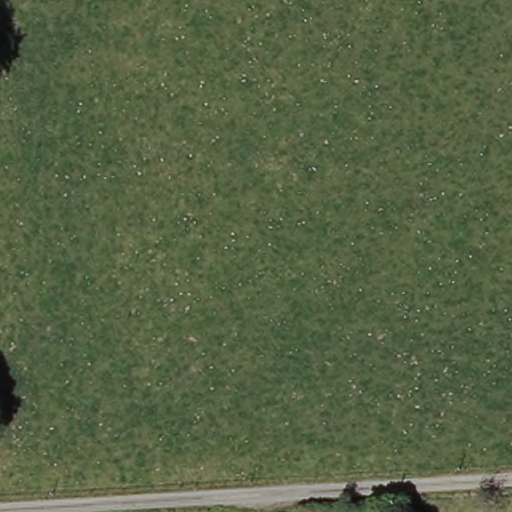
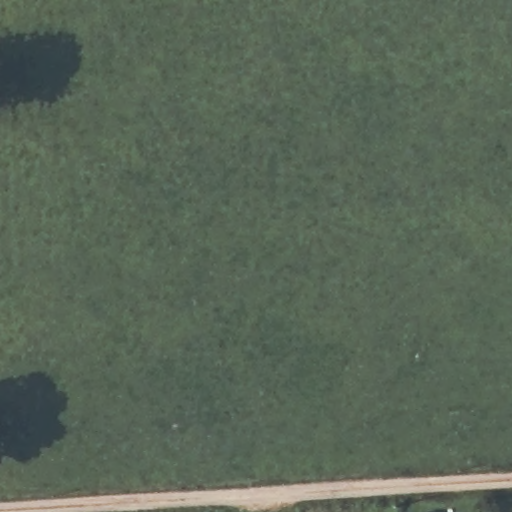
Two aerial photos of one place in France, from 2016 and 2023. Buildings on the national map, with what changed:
[]

